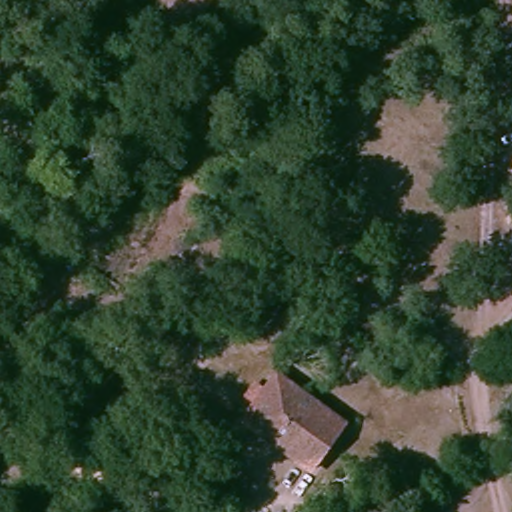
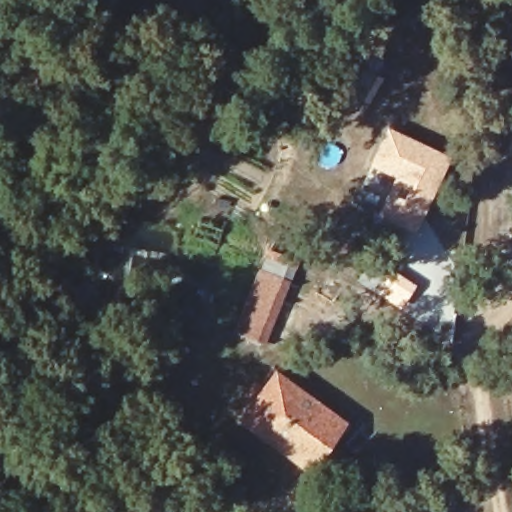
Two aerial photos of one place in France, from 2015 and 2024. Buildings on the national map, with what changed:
new [(339,58),(360,70),(348,91),(327,79),(339,58)]
new [(377,216),(394,177),(369,165),(387,127),(452,159),(415,234),(377,216)]
new [(234,332),(260,268),(292,281),(268,342),(234,332)]
unchanged [(314,470),(241,424),(272,374),(345,421),(336,434),(322,457),(314,470)]

